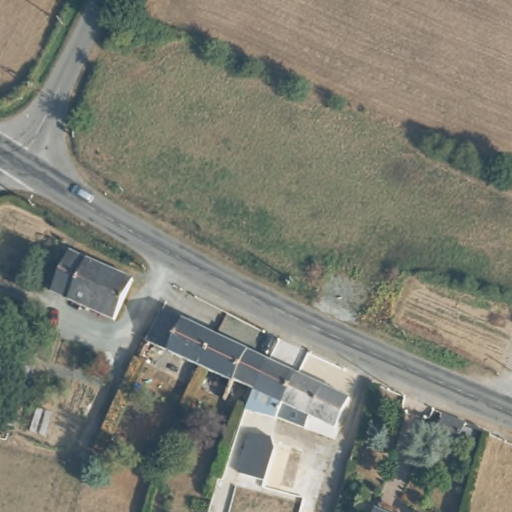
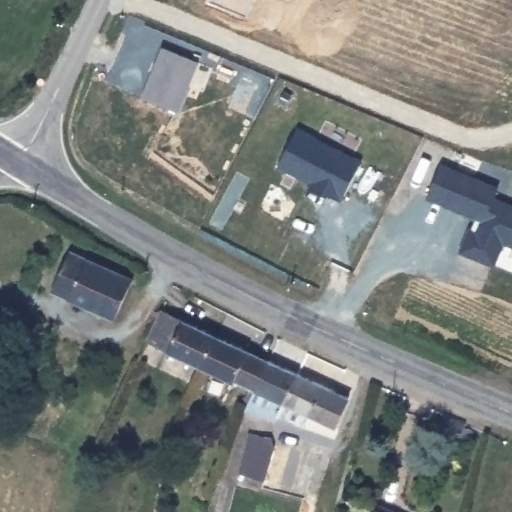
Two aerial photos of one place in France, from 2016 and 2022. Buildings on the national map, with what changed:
new [(199,62),(178,114),(140,97),(161,47),(199,62)]
new [(277,168),(298,127),(362,161),(342,202),(277,168)]
new [(504,244),(494,267),(459,253),(468,227),(477,229),(480,222),(426,199),(442,164),(499,187),(496,196),(512,203),(512,247),(504,244)]
unchanged [(50,293),(70,250),(131,277),(113,322),(50,293)]
unchanged [(184,318),(170,351),(144,340),(160,307),(184,318)]
unchanged [(170,351),(184,318),(220,335),(206,367),(170,351)]
unchanged [(0,394),(0,334),(4,322),(41,331),(23,400),(0,394)]
unchanged [(233,380),(206,367),(220,335),(246,347),(267,356),(299,371),(286,403),(336,427),(334,432),(309,426),(247,408),(254,390),(233,380)]
unchanged [(350,394),(336,427),(286,403),(299,371),(350,394)]
unchanged [(465,431),(475,436),(472,448),(459,447),(458,450),(432,441),(442,412),(467,423),(465,431)]
unchanged [(273,487),(275,481),(248,472),(262,432),(309,450),(312,451),(301,495),(292,492),(273,487)]
unchanged [(371,504),(388,512),(367,512),(371,504)]

